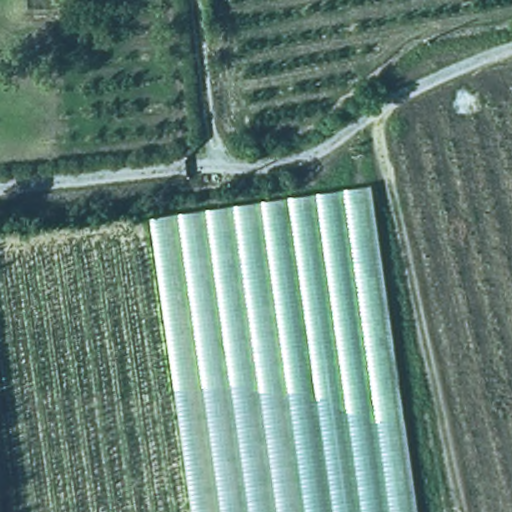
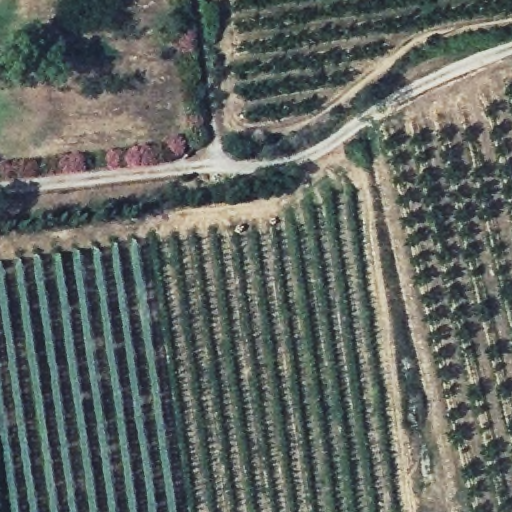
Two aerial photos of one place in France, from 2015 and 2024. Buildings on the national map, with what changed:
demolished [(412,512),(185,512),(143,217),(367,187),(412,512)]

